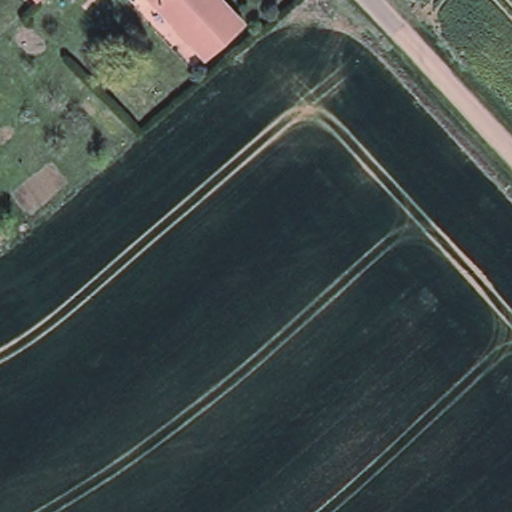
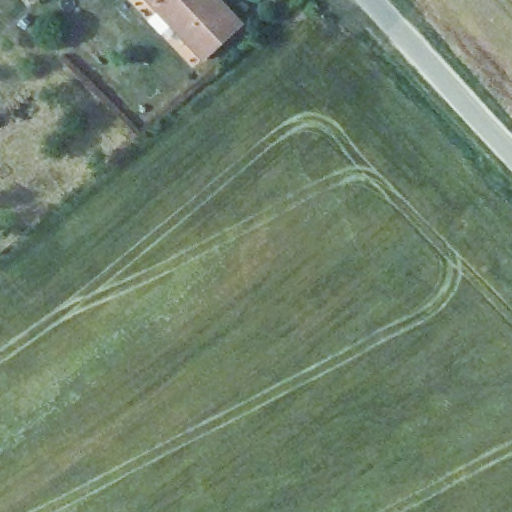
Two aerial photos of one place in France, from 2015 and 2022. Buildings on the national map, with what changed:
unchanged [(204,54),(153,0),(227,0),(244,18),(238,23),(204,54)]

